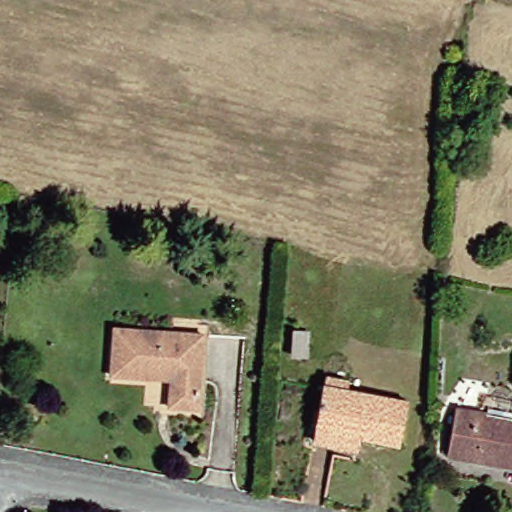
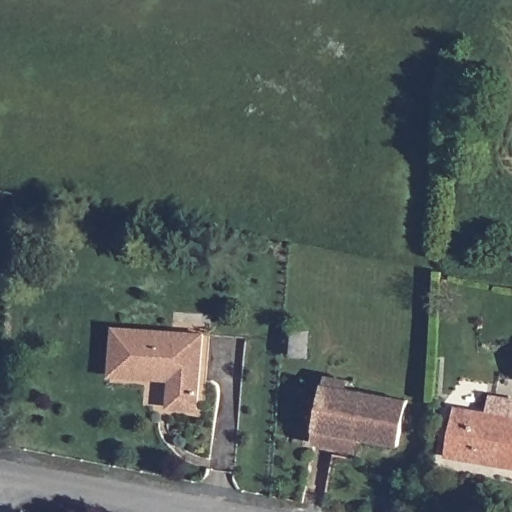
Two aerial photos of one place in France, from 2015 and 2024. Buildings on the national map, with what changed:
unchanged [(200,338),(195,413),(169,412),(169,386),(111,381),(112,332),(200,338)]
unchanged [(310,448),(311,438),(320,390),(321,381),(348,386),(346,395),(402,405),(395,449),(368,446),(366,457),(310,448)]
unchanged [(448,412),(512,422),(512,473),(498,471),(475,467),(441,461),(448,412)]

